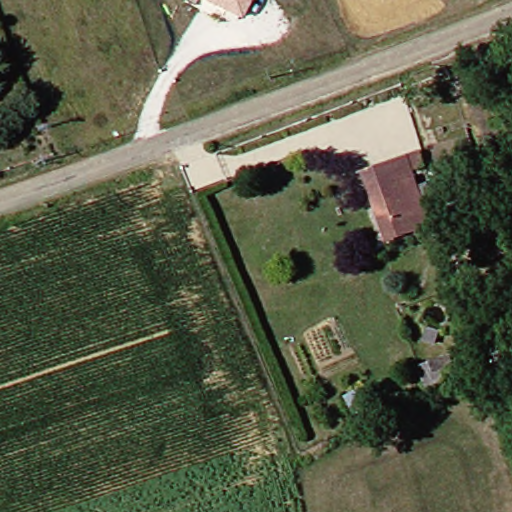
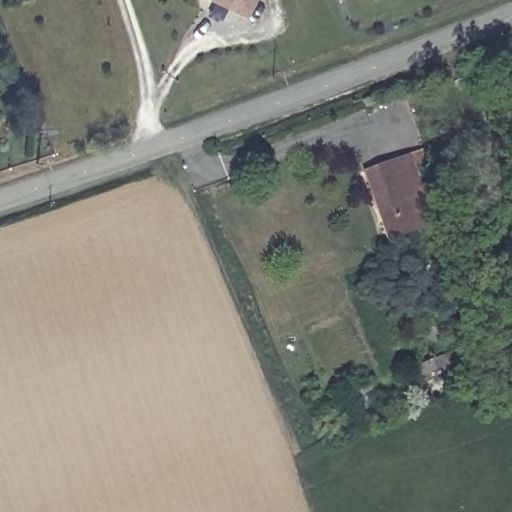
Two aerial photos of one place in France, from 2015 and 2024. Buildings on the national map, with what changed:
unchanged [(245,19),(204,0),(254,0),(245,19)]
unchanged [(426,228),(408,234),(394,238),(382,200),(370,165),(418,150),(436,210),(440,224),(426,228)]
unchanged [(456,347),(429,360),(419,345),(447,330),(456,347)]
unchanged [(512,349),(512,361),(510,349),(512,349)]

